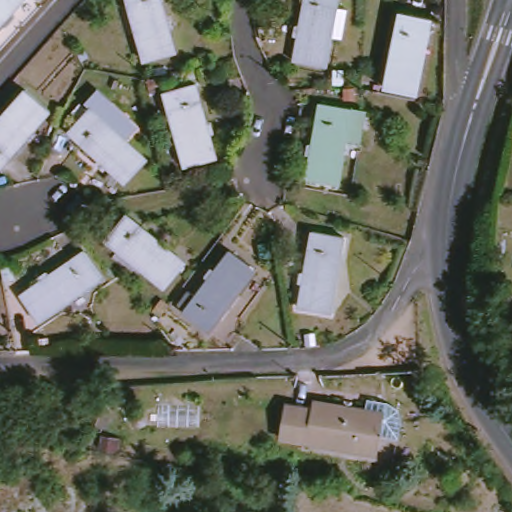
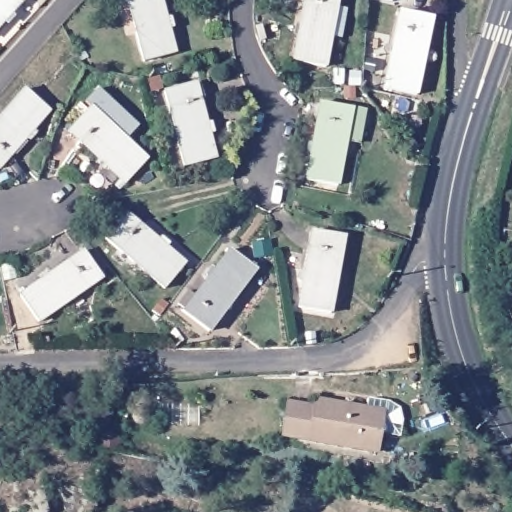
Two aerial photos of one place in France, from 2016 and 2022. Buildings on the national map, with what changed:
unchanged [(32,0),(0,35),(0,0),(32,0)]
unchanged [(133,9),(131,0),(164,0),(180,57),(148,65),(133,9)]
unchanged [(310,0),(343,0),(341,9),(353,10),(346,40),(336,37),(330,66),(298,60),(310,0)]
unchanged [(389,87),(404,13),(436,19),(421,94),(389,87)]
unchanged [(189,166),(174,109),(169,92),(201,84),(221,158),(189,166)]
unchanged [(59,111),(8,169),(3,164),(0,166),(0,129),(34,90),(59,111)]
unchanged [(316,179),(329,103),(374,111),(368,144),(355,141),(347,184),(316,179)]
unchanged [(129,184),(73,131),(95,107),(108,119),(119,106),(142,127),(130,140),(151,160),(129,184)]
unchanged [(225,180),(225,165),(237,164),(238,179),(225,180)]
unchanged [(169,288),(147,270),(110,240),(131,215),(146,226),(190,263),(169,288)]
unchanged [(303,306),(317,231),(349,237),(335,312),(303,306)]
unchanged [(39,322),(20,295),(83,251),(101,278),(39,322)]
unchanged [(193,312),(195,310),(188,305),(198,291),(205,296),(239,251),(265,270),(219,331),(193,312)]
unchanged [(283,408),(309,413),(309,405),(359,414),(361,405),(381,408),(393,415),(395,426),(392,441),(373,438),(369,457),(277,441),(283,408)]
unchanged [(94,425),(101,408),(110,412),(103,429),(94,425)]

